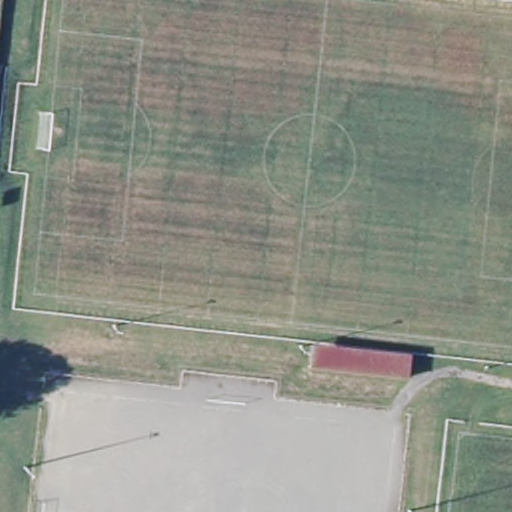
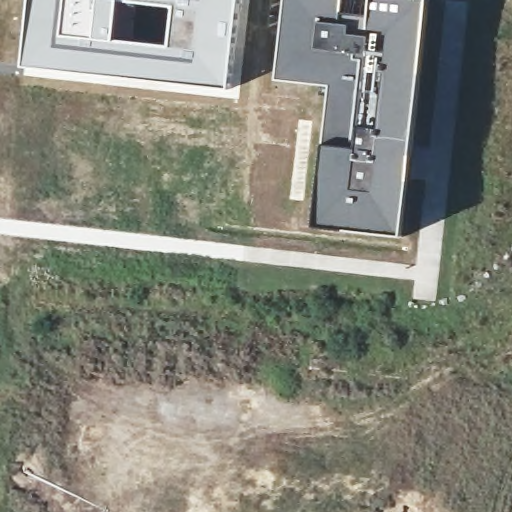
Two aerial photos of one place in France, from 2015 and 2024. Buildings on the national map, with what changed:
new [(32,7),(33,0),(242,0),(232,90),(112,78),(25,67),(32,7)]
new [(287,0),(430,0),(403,237),(315,227),(330,87),(277,80),(287,0)]
unchanged [(414,357),(411,385),(313,374),(316,346),(414,357)]

